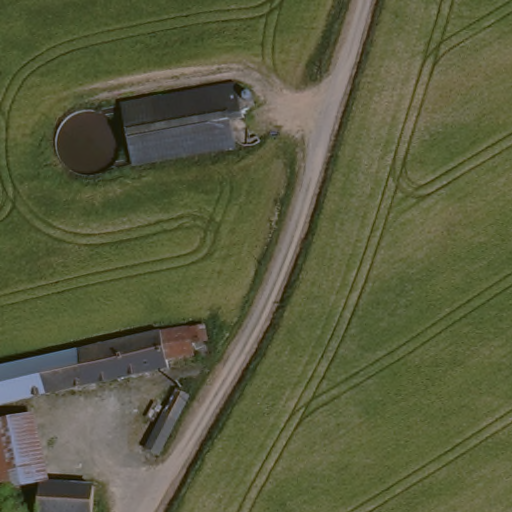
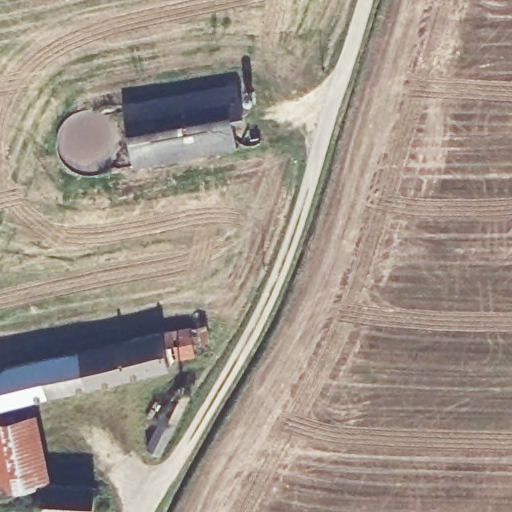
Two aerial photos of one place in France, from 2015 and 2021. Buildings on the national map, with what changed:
unchanged [(133,167),(123,108),(253,80),(260,111),(245,116),(251,143),(133,167)]
unchanged [(196,330),(200,357),(166,356),(172,371),(0,407),(0,366),(162,327),(196,330)]
unchanged [(166,457),(151,450),(185,387),(195,392),(166,457)]
unchanged [(41,411),(51,480),(101,482),(100,512),(36,512),(36,484),(0,492),(0,411),(4,419),(41,411)]

